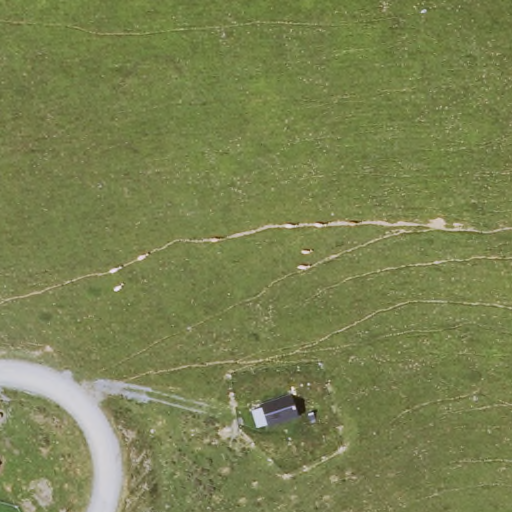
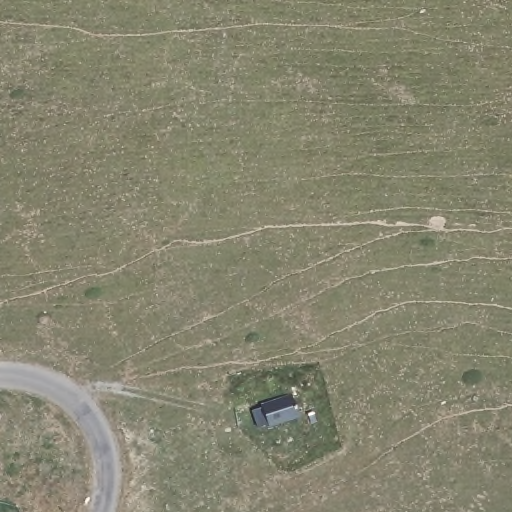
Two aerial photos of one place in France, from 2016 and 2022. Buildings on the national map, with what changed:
unchanged [(268,432),(261,407),(295,397),(302,422),(268,432)]

